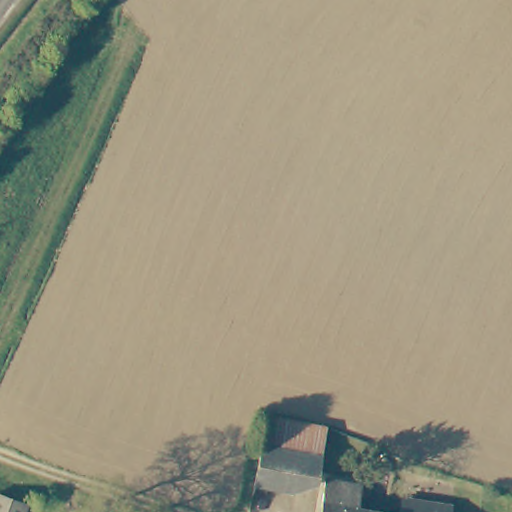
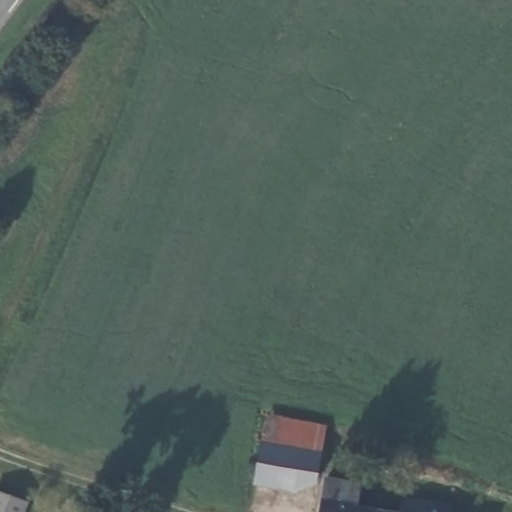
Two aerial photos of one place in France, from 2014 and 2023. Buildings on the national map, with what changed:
unchanged [(316,482),(296,492),(254,485),(265,416),(324,426),(316,482)]
unchanged [(374,466),(394,471),(389,493),(368,489),(374,466)]
unchanged [(360,485),(356,507),(383,512),(320,512),(326,479),(360,485)]
unchanged [(0,512),(0,493),(27,503),(24,512),(0,512)]
unchanged [(452,505),(451,512),(399,512),(401,497),(452,505)]

